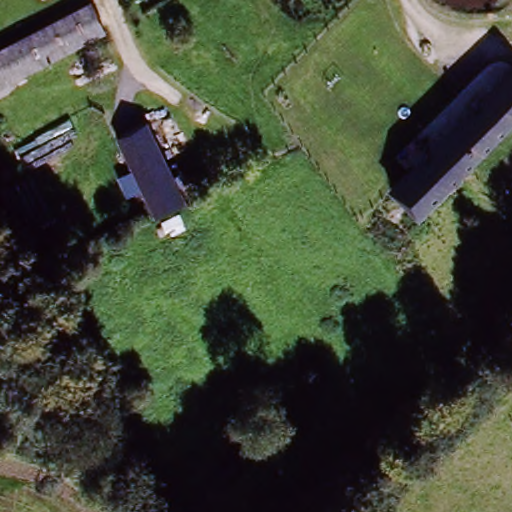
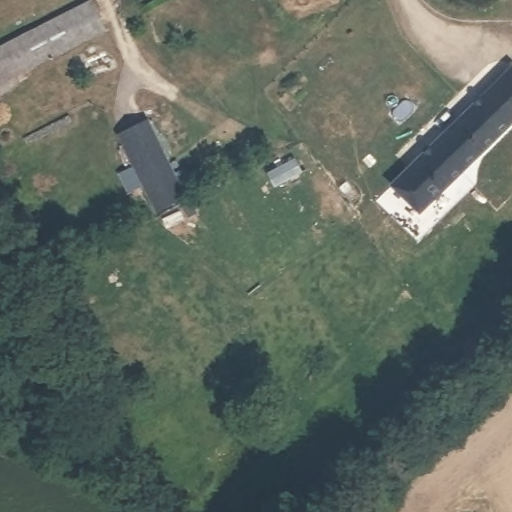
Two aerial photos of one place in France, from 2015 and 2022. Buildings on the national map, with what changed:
unchanged [(90,1),(107,32),(0,88),(0,41),(90,1)]
unchanged [(512,130),(477,167),(468,158),(415,213),(390,188),(505,63),(512,69),(512,130)]
unchanged [(155,215),(143,188),(130,192),(122,173),(135,168),(123,135),(150,122),(187,197),(155,215)]

